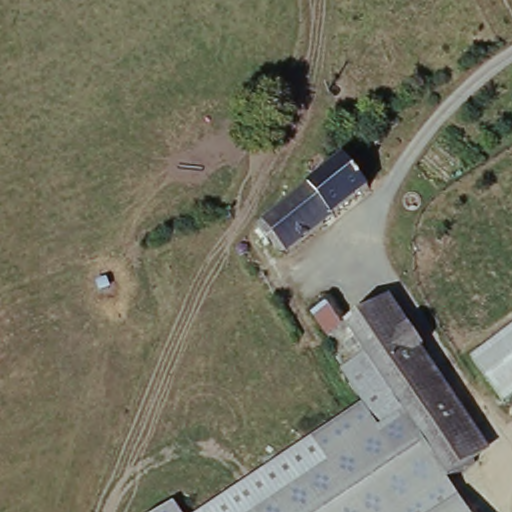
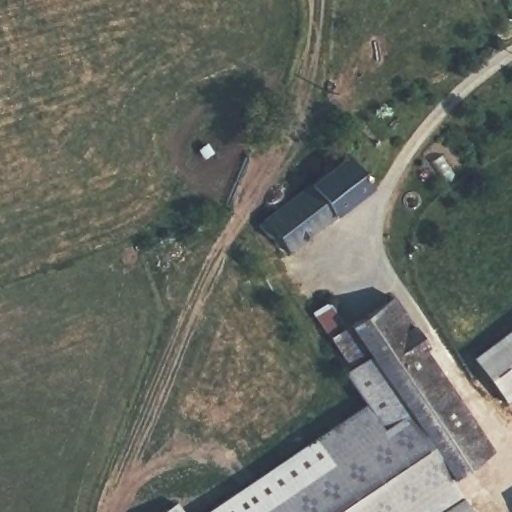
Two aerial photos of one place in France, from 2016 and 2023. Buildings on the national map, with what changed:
unchanged [(373,192),(353,207),(291,254),(267,224),(325,179),(325,174),(350,160),(352,159),(373,192)]
unchanged [(338,381),(345,373),(307,319),(332,304),(347,327),(390,302),(489,458),(444,487),(400,422),(377,437),(359,412),(338,381)]
unchanged [(474,361),(512,332),(512,400),(506,405),(474,361)]
unchanged [(308,447),(359,412),(377,437),(400,422),(444,487),(460,511),(457,512),(263,512),(321,472),(308,447)]
unchanged [(263,512),(207,512),(308,447),(321,472),(263,512)]
unchanged [(457,512),(460,511),(444,487),(453,482),(472,512),(457,512)]
unchanged [(176,512),(166,512),(173,507),(176,512)]

